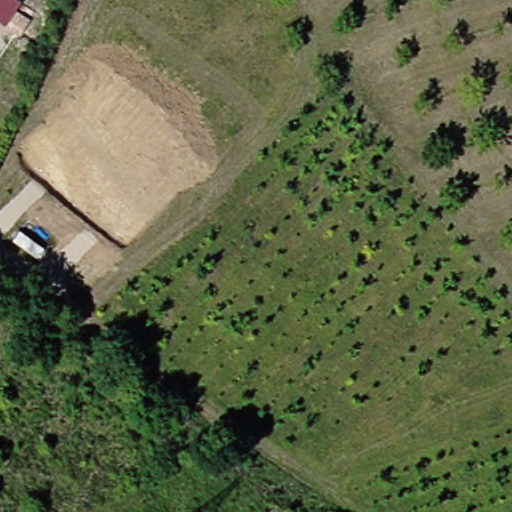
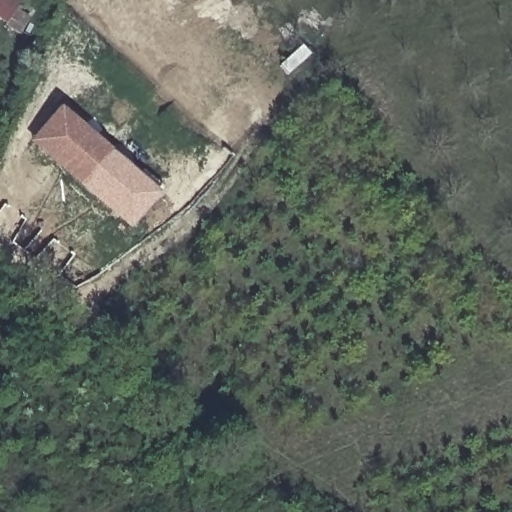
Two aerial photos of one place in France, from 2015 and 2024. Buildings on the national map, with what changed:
unchanged [(25,2),(9,24),(0,17),(0,0),(23,0),(25,2)]
new [(135,177),(142,170),(162,189),(130,227),(80,185),(30,144),(59,108),(108,150),(135,177)]

